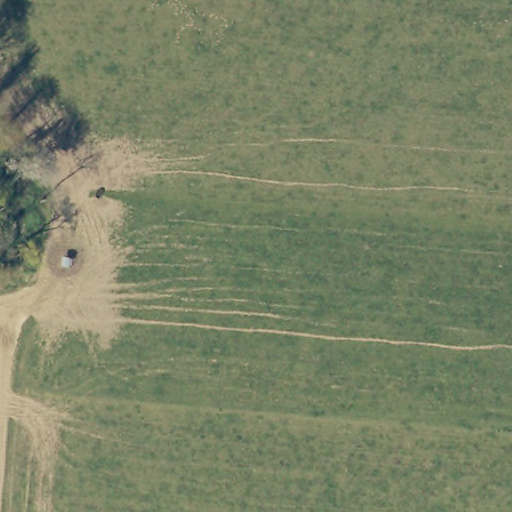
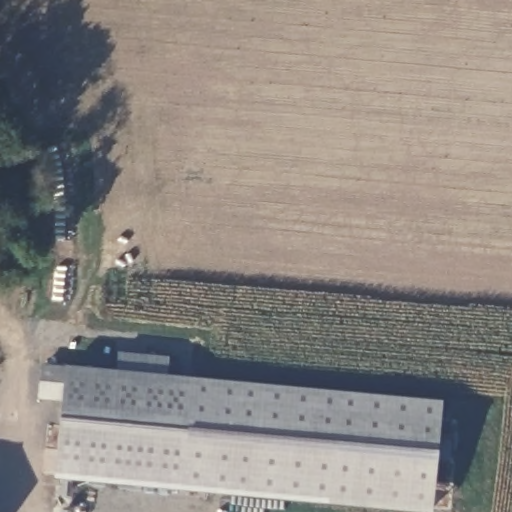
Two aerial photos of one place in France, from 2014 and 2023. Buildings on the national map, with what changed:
new [(431,512),(377,512),(54,482),(62,404),(36,401),(39,366),(66,368),(116,374),(117,354),(168,359),(166,378),(441,404),(431,512)]

